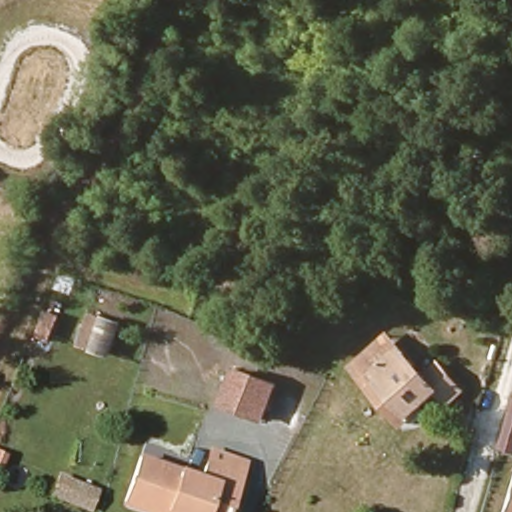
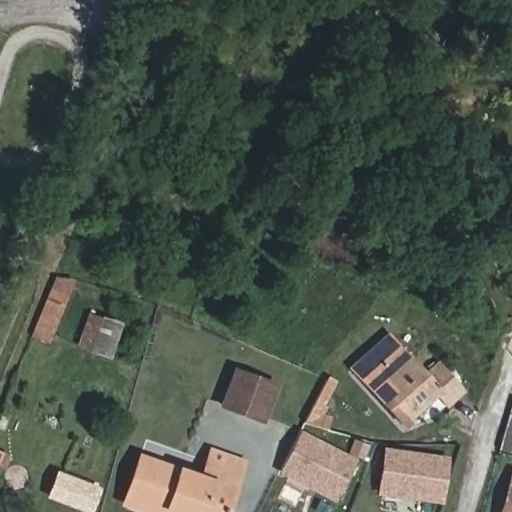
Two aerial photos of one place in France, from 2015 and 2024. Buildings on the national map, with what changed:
new [(50,345),(31,337),(55,275),(74,282),(50,345)]
unchanged [(125,323),(114,360),(82,348),(90,312),(125,323)]
unchanged [(463,390),(448,402),(437,390),(408,417),(400,425),(350,368),(388,334),(400,346),(425,375),(440,363),(463,390)]
unchanged [(261,421),(220,405),(233,371),(274,387),(261,421)]
unchanged [(507,448),(512,429),(512,449),(507,448)]
new [(279,473),(301,430),(357,460),(335,502),(279,473)]
new [(378,495),(385,448),(450,457),(443,505),(378,495)]
unchanged [(142,458),(205,481),(216,451),(249,463),(230,512),(155,512),(126,502),(142,458)]
unchanged [(53,495),(59,478),(100,492),(95,508),(53,495)]
unchanged [(502,512),(512,481),(512,512),(502,512)]

